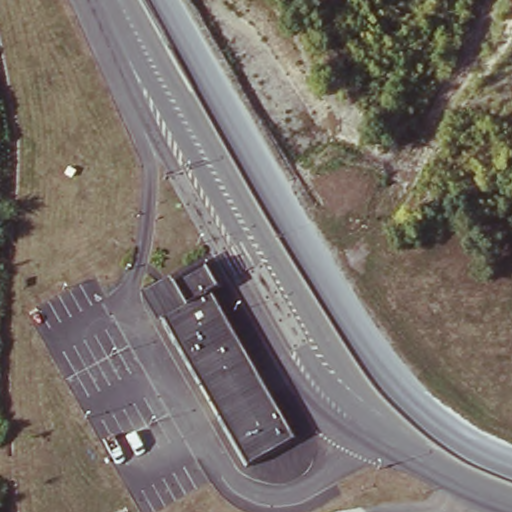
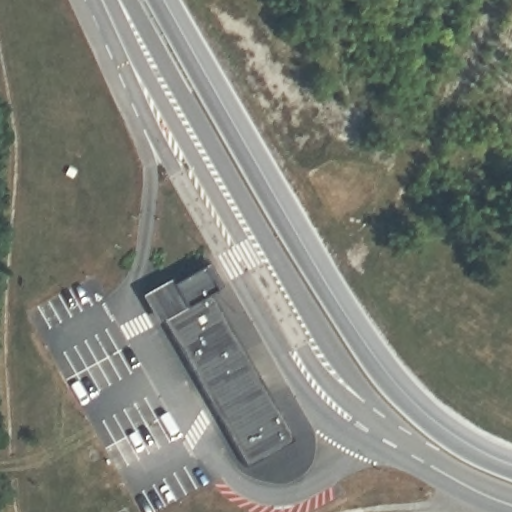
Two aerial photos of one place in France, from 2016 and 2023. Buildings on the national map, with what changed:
unchanged [(171,277),(174,281),(206,264),(219,288),(212,291),(293,438),(247,463),(158,319),(140,291),(171,277)]

